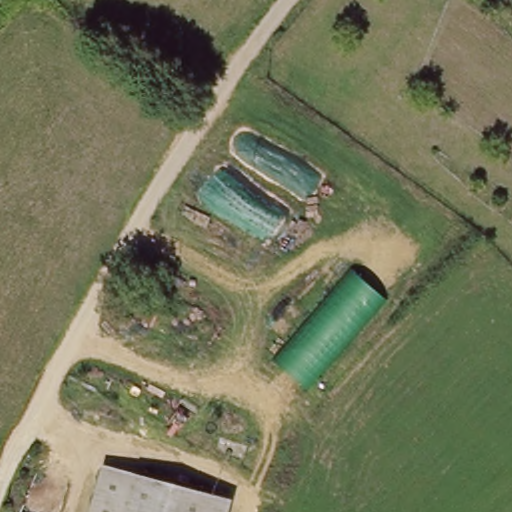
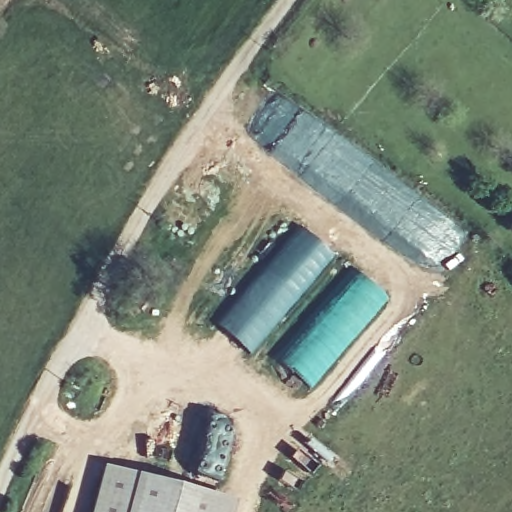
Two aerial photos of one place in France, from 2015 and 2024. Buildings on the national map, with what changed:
new [(213,322),(298,224),(333,255),(249,354),(213,322)]
unchanged [(386,300),(309,388),(273,359),(350,270),(386,300)]
unchanged [(243,512),(98,512),(114,462),(225,500),(244,507),(243,512)]

